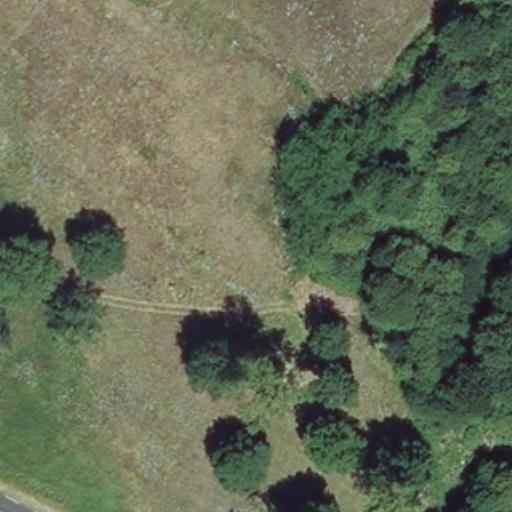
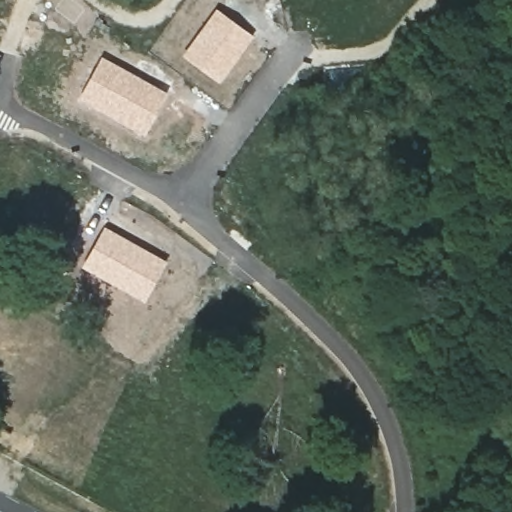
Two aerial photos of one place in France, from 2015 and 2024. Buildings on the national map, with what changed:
new [(254,37),(220,83),(183,56),(216,9),(254,37)]
new [(169,94),(145,136),(78,99),(102,57),(169,94)]
new [(145,302),(83,267),(105,227),(168,261),(145,302)]

